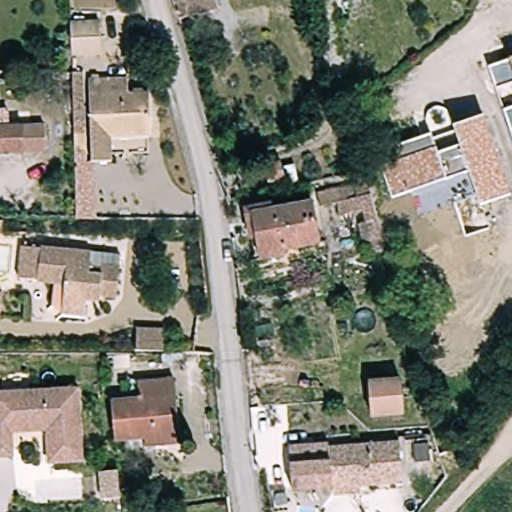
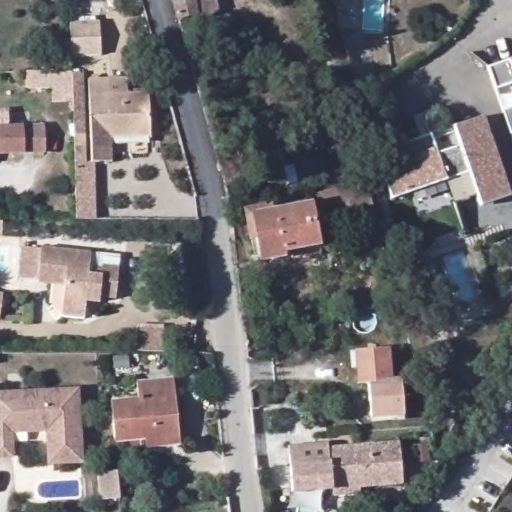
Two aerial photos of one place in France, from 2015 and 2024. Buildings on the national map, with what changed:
unchanged [(186,0),(210,0),(214,15),(192,20),(173,25),(166,5),(186,0)]
unchanged [(103,59),(75,60),(73,29),(101,27),(103,59)]
unchanged [(496,87),(489,67),(509,59),(512,58),(512,81),(496,87)]
unchanged [(128,95),(153,96),(153,141),(113,141),(112,165),(91,165),(92,83),(128,84),(128,95)]
unchanged [(511,132),(504,110),(512,107),(512,132),(511,132)]
unchanged [(480,207),(469,173),(392,200),(381,165),(399,159),(394,147),(432,135),(438,154),(459,146),(453,126),(485,117),(511,196),(480,207)]
unchanged [(0,160),(0,127),(45,125),(45,160),(0,160)]
unchanged [(316,202),(325,239),(290,250),(291,254),(265,261),(254,219),(316,202)]
unchanged [(59,321),(59,313),(62,290),(38,288),(38,282),(17,281),(18,250),(40,252),(40,249),(92,252),(92,265),(121,267),(118,301),(101,300),(99,309),(86,307),(85,314),(84,323),(59,321)]
unchanged [(135,352),(136,329),(163,330),(163,352),(135,352)]
new [(392,380),(368,382),(356,383),(353,352),(389,348),(392,380)]
unchanged [(403,415),(371,416),(368,382),(401,380),(403,415)]
unchanged [(148,450),(147,438),(117,441),(113,401),(143,398),(141,385),(174,381),(181,435),(181,445),(148,450)]
unchanged [(87,466),(51,468),(48,432),(18,435),(19,457),(0,459),(0,393),(82,388),(87,466)]
unchanged [(327,440),(328,445),(398,440),(402,481),(361,485),(336,486),(333,486),(293,490),(289,443),(327,440)]
unchanged [(361,484),(361,485),(361,491),(334,493),(333,486),(336,486),(361,484)]

